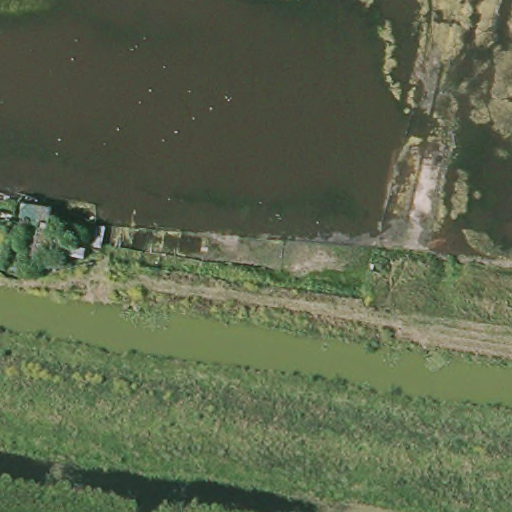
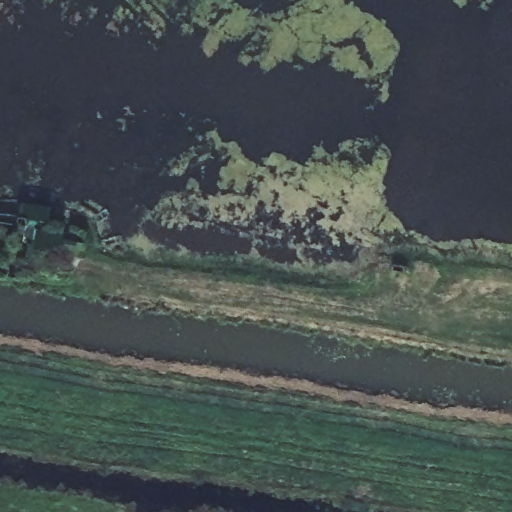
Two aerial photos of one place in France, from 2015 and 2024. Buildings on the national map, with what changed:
unchanged [(45,224),(40,240),(24,236),(27,222),(45,224)]

